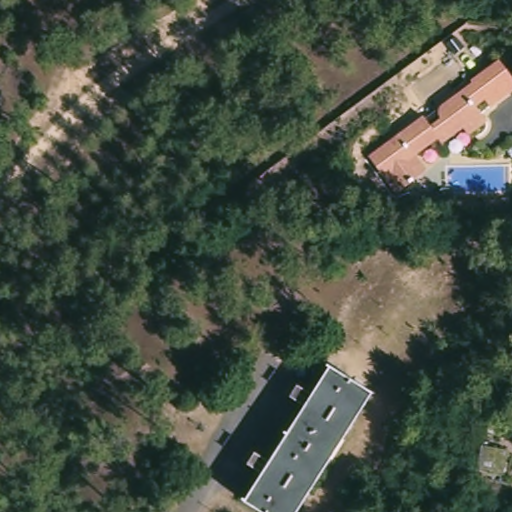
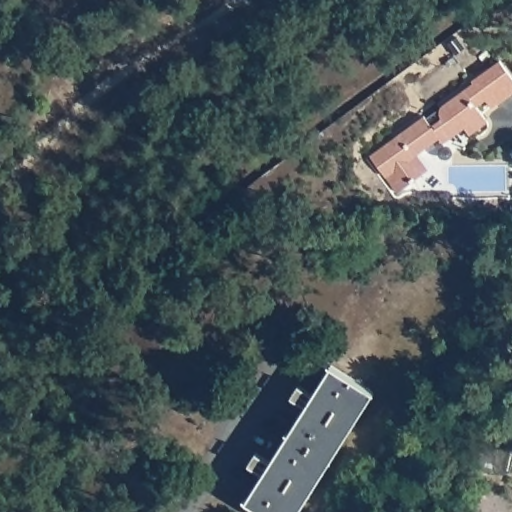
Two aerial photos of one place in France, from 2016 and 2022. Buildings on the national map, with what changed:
unchanged [(396,192),(368,155),(421,114),(428,124),(439,116),(437,114),(436,112),(436,111),(435,109),(436,107),(436,106),(440,103),(470,79),(466,73),(492,52),(512,78),(512,84),(488,104),(482,96),(473,103),(479,111),(485,118),(478,123),(466,131),(461,124),(440,141),(436,135),(413,153),(425,169),(413,179),(396,192)]
unchanged [(257,479),(243,470),(250,458),(264,466),(299,412),(285,403),(292,390),(307,400),(324,372),(367,398),(296,512),(246,512),(239,508),(257,479)]
unchanged [(503,475),(479,470),(483,448),(507,452),(503,475)]

